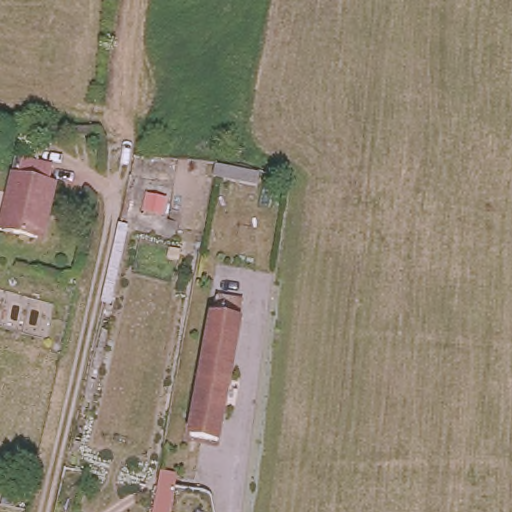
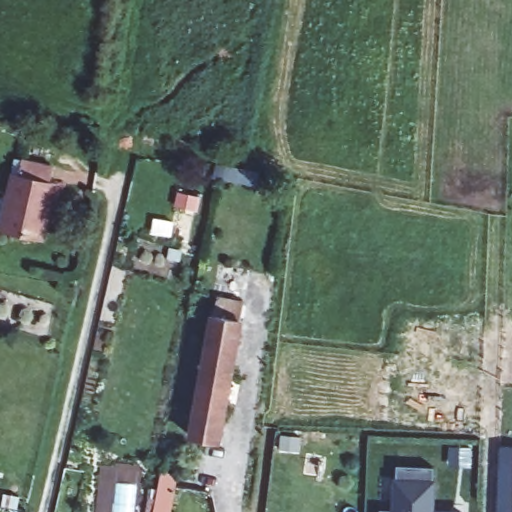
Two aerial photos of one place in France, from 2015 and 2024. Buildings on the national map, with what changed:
unchanged [(37,240),(0,232),(12,175),(18,176),(23,160),(38,165),(54,168),(51,184),(57,185),(50,216),(43,242),(37,240)]
new [(224,167),(259,175),(257,187),(222,180),(224,167)]
unchanged [(237,300),(213,440),(185,435),(211,295),(237,300)]
new [(499,446),(512,447),(512,512),(497,512),(499,446)]
new [(379,510),(394,511),(396,466),(434,468),(432,512),(379,512),(379,510)]
unchanged [(178,477),(175,491),(174,494),(171,512),(152,512),(154,499),(156,492),(156,488),(159,474),(178,477)]

